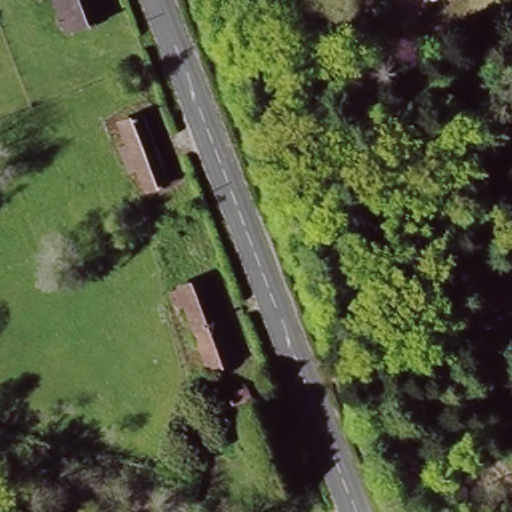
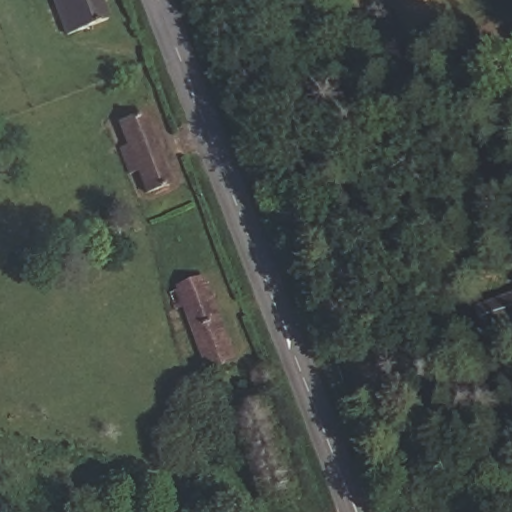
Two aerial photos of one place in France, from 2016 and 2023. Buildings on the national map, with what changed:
unchanged [(67,0),(63,1),(63,0),(67,0)]
unchanged [(77,37),(63,1),(67,0),(107,0),(115,22),(77,37)]
unchanged [(126,154),(134,150),(125,125),(147,116),(162,153),(131,165),(126,154)]
unchanged [(175,187),(152,197),(143,175),(137,177),(131,165),(162,153),(175,187)]
unchanged [(197,327),(190,311),(183,314),(175,296),(183,293),(181,288),(210,277),(225,316),(197,327)]
unchanged [(489,313),(512,305),(512,334),(498,339),(489,313)]
unchanged [(213,370),(197,327),(225,316),(242,359),(213,370)]
unchanged [(256,389),(262,405),(243,412),(246,420),(230,425),(222,405),(238,398),(237,396),(256,389)]

